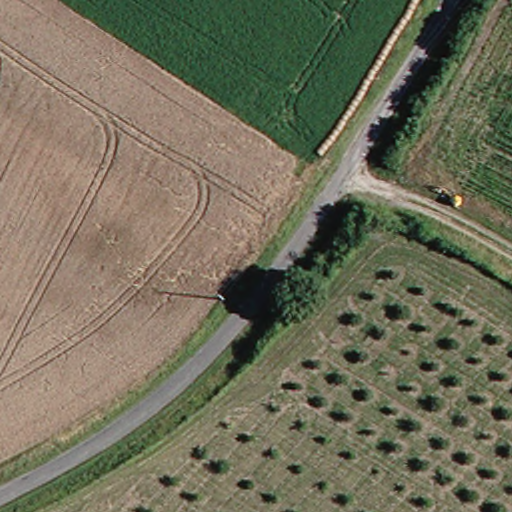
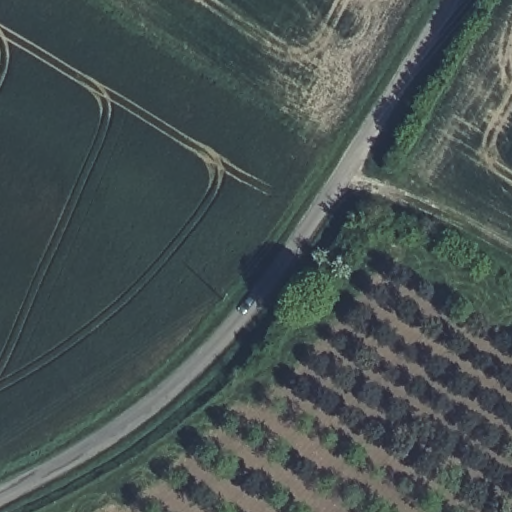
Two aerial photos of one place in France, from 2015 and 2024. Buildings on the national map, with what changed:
[]

